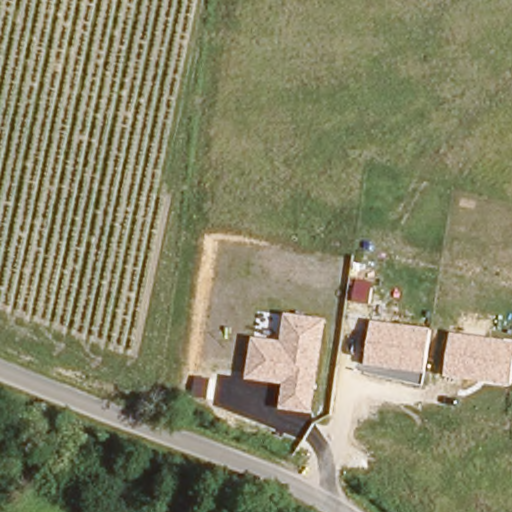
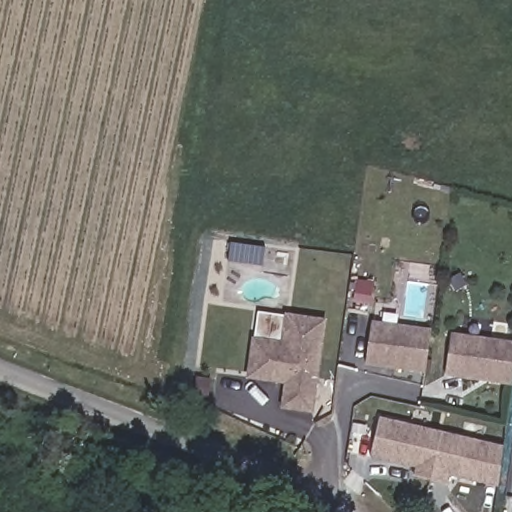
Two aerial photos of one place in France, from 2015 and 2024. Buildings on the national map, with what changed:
unchanged [(313,413),(282,408),(282,382),(247,378),(254,337),(282,341),(286,313),(327,320),(313,413)]
unchanged [(426,373),(365,366),(372,320),(433,329),(426,373)]
unchanged [(445,376),(452,334),(512,342),(512,384),(445,376)]
new [(371,458),(380,417),(442,431),(431,481),(414,477),(416,468),(371,458)]
new [(442,431),(502,446),(497,488),(452,477),(450,486),(431,481),(442,431)]

